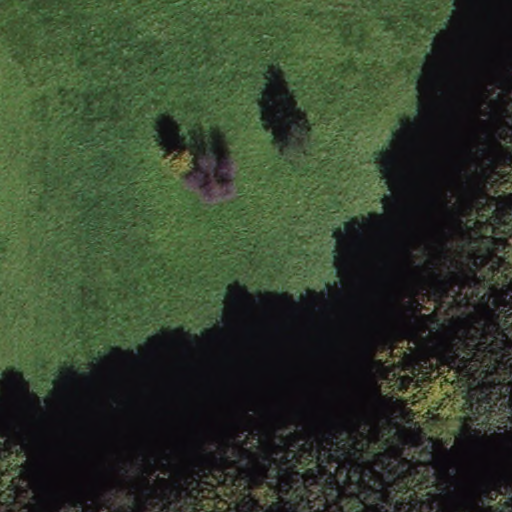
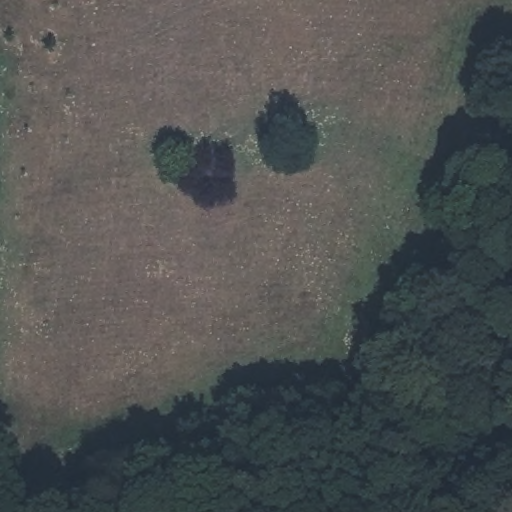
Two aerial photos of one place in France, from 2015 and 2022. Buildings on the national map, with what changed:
[]

